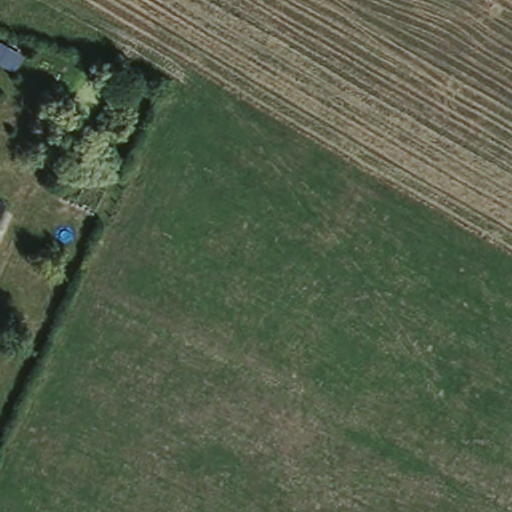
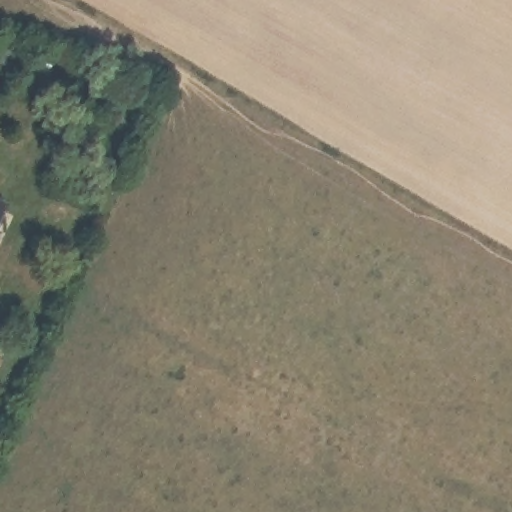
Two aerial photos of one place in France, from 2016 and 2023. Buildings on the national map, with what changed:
unchanged [(0,235),(0,200),(13,205),(0,235)]

